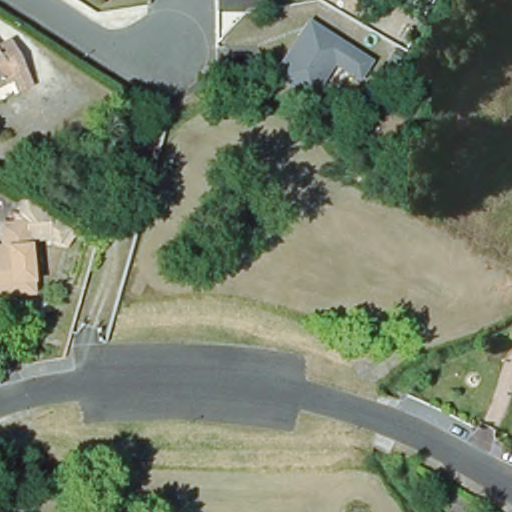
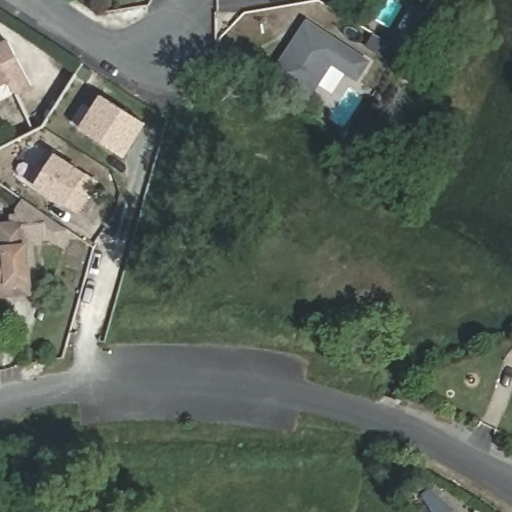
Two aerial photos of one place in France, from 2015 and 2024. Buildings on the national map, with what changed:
new [(412,5),(426,14),(396,65),(366,47),(374,34),(390,43),(412,5)]
unchanged [(361,83),(331,65),(310,100),(271,76),(307,18),(373,60),(361,83)]
unchanged [(0,41),(8,37),(33,85),(14,95),(9,86),(0,68),(0,41)]
unchanged [(0,91),(0,68),(9,86),(0,91)]
new [(103,97),(147,125),(126,159),(82,131),(103,97)]
new [(49,149),(99,180),(80,210),(30,178),(49,149)]
unchanged [(24,203),(66,233),(57,246),(49,241),(48,242),(26,244),(30,297),(0,299),(0,230),(24,227),(24,203)]

